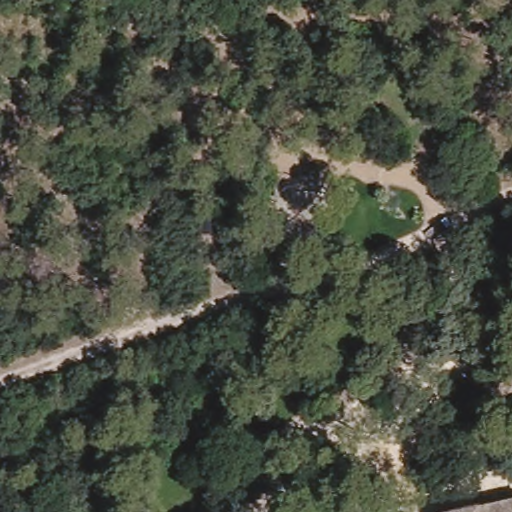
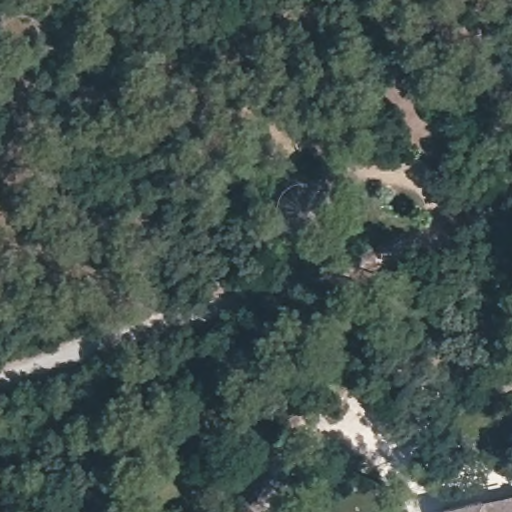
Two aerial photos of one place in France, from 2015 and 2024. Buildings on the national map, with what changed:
unchanged [(512,493),(512,512),(426,512),(512,493)]

